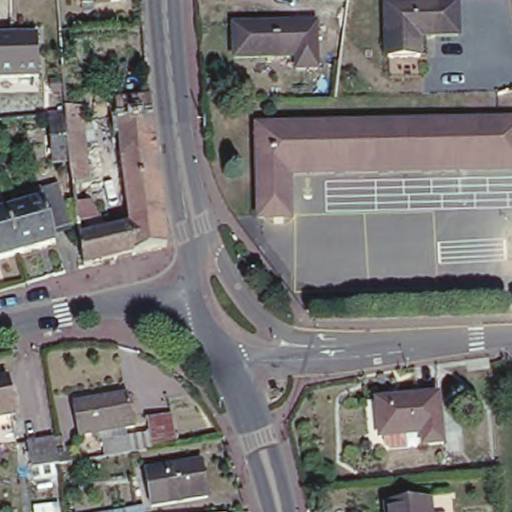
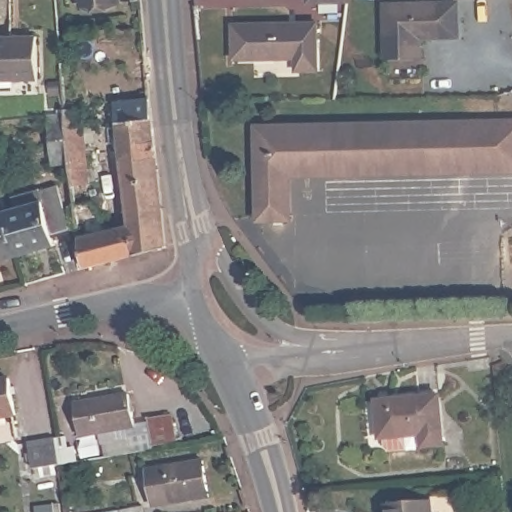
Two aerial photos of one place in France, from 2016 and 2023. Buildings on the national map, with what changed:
unchanged [(385,2),(461,1),(461,38),(424,38),(424,59),(385,57),(385,2)]
unchanged [(301,23),(301,55),(239,56),(239,24),(301,23)]
unchanged [(39,74),(0,73),(0,32),(39,33),(39,74)]
unchanged [(139,217),(123,110),(86,114),(85,107),(151,101),(163,210),(165,244),(132,254),(124,222),(139,217)]
unchanged [(42,120),(59,118),(59,110),(79,108),(85,170),(67,172),(66,168),(48,169),(42,120)]
unchanged [(258,124),(512,120),(512,174),(294,178),(295,220),(258,221),(258,124)]
unchanged [(13,209),(9,194),(38,186),(38,188),(55,183),(68,227),(50,231),(53,246),(16,255),(3,212),(13,209)]
unchanged [(124,222),(132,254),(82,268),(71,204),(94,200),(124,222)]
unchanged [(0,212),(3,212),(16,255),(0,258),(0,212)]
unchanged [(18,415),(0,418),(0,382),(12,380),(18,415)]
unchanged [(103,428),(84,432),(78,399),(133,389),(139,422),(125,424),(131,449),(108,453),(103,428)]
unchanged [(444,397),(449,447),(427,447),(426,435),(387,438),(383,401),(444,397)]
unchanged [(174,408),(179,437),(155,442),(150,413),(174,408)]
unchanged [(77,463),(59,466),(34,472),(28,445),(54,440),(56,454),(74,451),(77,463)]
unchanged [(205,461),(211,496),(155,505),(151,470),(205,461)]
unchanged [(437,512),(392,512),(392,503),(436,499),(437,512)]
unchanged [(149,512),(112,512),(147,505),(149,512)]

